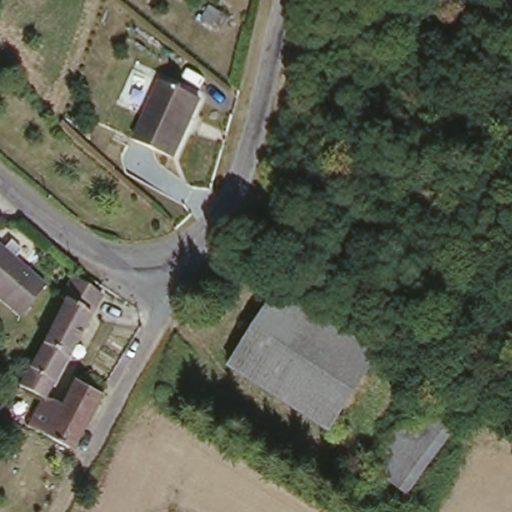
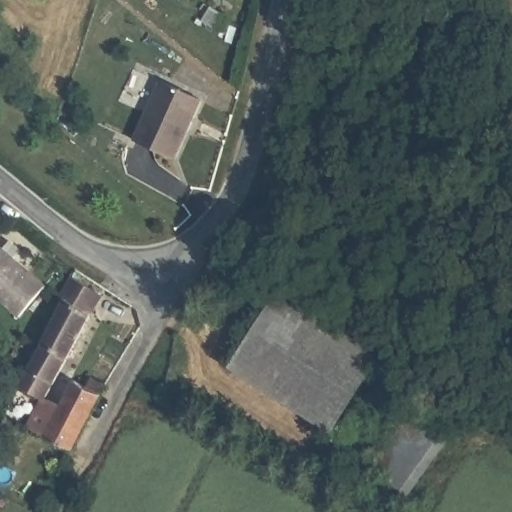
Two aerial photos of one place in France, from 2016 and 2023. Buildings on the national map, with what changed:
unchanged [(202,106),(173,165),(135,145),(163,87),(202,106)]
unchanged [(21,317),(0,299),(0,248),(45,286),(21,317)]
unchanged [(44,346),(55,322),(66,302),(76,278),(104,296),(47,401),(46,403),(41,401),(18,388),(44,346)]
unchanged [(371,349),(320,431),(235,376),(285,295),(371,349)]
unchanged [(76,384),(88,388),(93,379),(106,387),(71,453),(28,430),(41,401),(46,403),(47,401),(63,409),(76,384)]
unchanged [(365,478),(409,414),(449,441),(402,503),(365,478)]

